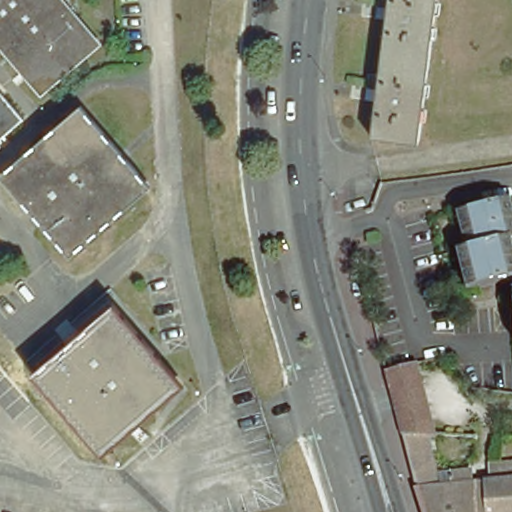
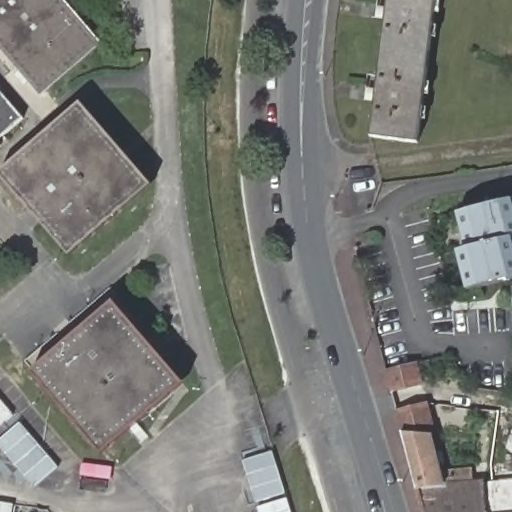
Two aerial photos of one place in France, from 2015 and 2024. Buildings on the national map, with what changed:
unchanged [(42,80),(0,31),(0,0),(67,0),(96,34),(42,80)]
unchanged [(374,136),(391,0),(438,0),(421,142),(374,136)]
unchanged [(11,144),(0,153),(0,78),(33,116),(7,139),(11,144)]
unchanged [(137,187),(71,244),(12,174),(78,118),(137,187)]
unchanged [(512,288),(479,297),(467,257),(477,254),(467,219),(509,206),(512,217),(512,248),(511,249),(512,254),(512,288)]
unchanged [(102,444),(44,376),(112,317),(170,384),(102,444)]
unchanged [(402,442),(395,414),(387,387),(383,370),(415,363),(433,432),(423,433),(437,487),(415,489),(402,442)]
new [(0,426),(0,399),(14,414),(0,426)]
new [(59,468),(35,488),(0,447),(0,440),(20,423),(59,468)]
new [(273,451),(286,494),(257,502),(244,462),(273,451)]
unchanged [(437,487),(452,486),(452,472),(468,471),(470,483),(491,481),(489,463),(512,461),(512,512),(422,512),(415,489),(437,487)]
new [(292,512),(259,512),(258,508),(288,499),(292,512)]

